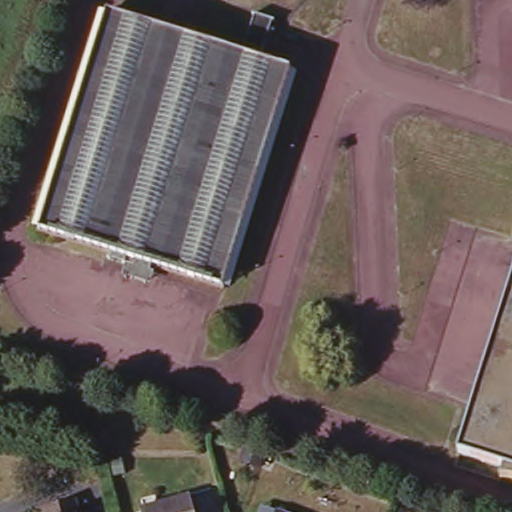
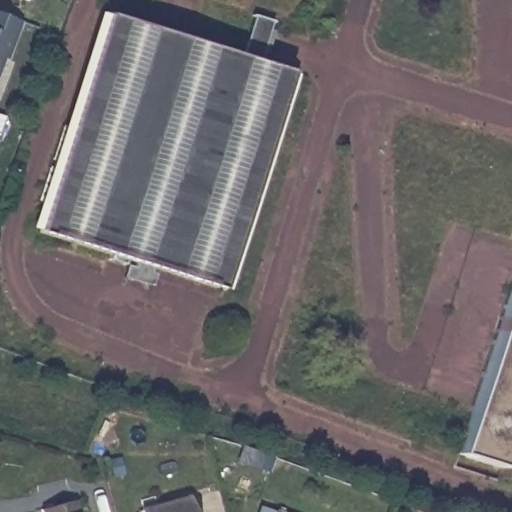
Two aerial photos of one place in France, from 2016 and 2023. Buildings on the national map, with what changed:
new [(31,0),(29,7),(9,0),(31,0)]
unchanged [(287,75),(217,291),(34,233),(105,14),(239,57),(252,19),(249,18),(250,15),(272,22),(271,25),(268,24),(256,62),(287,72),(287,75)]
new [(21,29),(7,66),(4,64),(0,76),(0,20),(21,29)]
unchanged [(504,474),(507,463),(463,449),(477,408),(512,296),(512,474),(507,474),(504,474)]
unchanged [(78,512),(42,512),(41,504),(37,488),(63,483),(67,497),(74,495),(78,512)]
unchanged [(187,499),(190,512),(137,512),(137,510),(187,499)]
unchanged [(291,512),(272,512),(275,505),(291,512)]

